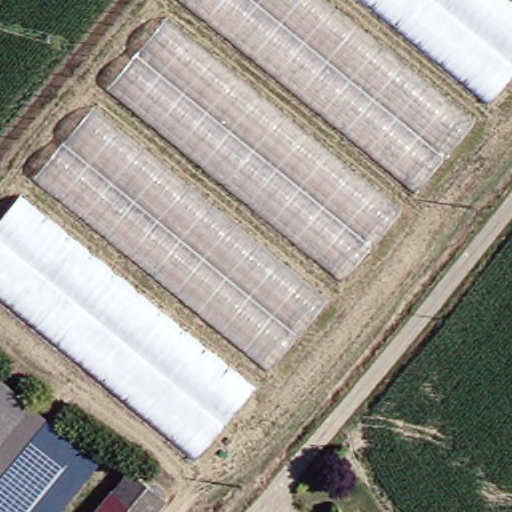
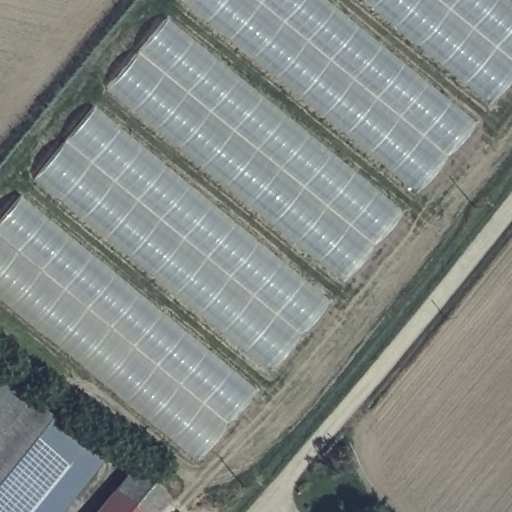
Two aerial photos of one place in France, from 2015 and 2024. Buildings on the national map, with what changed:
unchanged [(184,0),(312,0),(471,126),(415,193),(184,0)]
unchanged [(362,0),(498,0),(512,11),(512,73),(489,104),(362,0)]
unchanged [(342,283),(107,89),(163,31),(395,217),(342,283)]
unchanged [(271,369),(38,179),(88,118),(320,307),(271,369)]
unchanged [(196,456),(0,298),(0,221),(16,204),(248,395),(196,456)]
unchanged [(95,459),(55,508),(53,510),(51,512),(0,512),(0,380),(95,459)]
unchanged [(125,475),(157,502),(148,512),(94,512),(125,475)]

